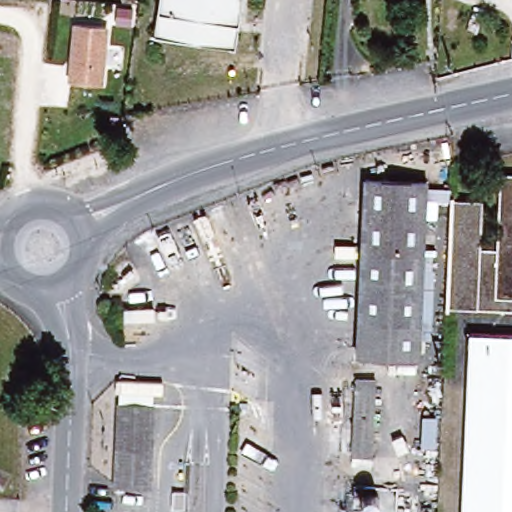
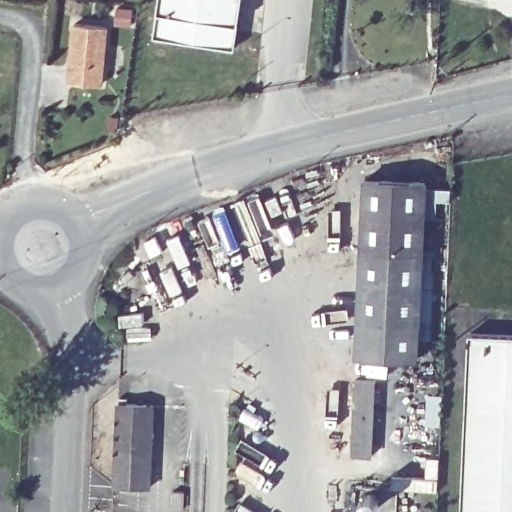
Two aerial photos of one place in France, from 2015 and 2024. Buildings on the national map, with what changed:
unchanged [(236,48),(157,38),(163,0),(242,0),(236,48)]
unchanged [(72,21),(110,22),(106,82),(67,80),(72,21)]
demolished [(454,196),(482,198),(480,247),(501,247),(508,173),(512,174),(512,312),(449,307),(454,196)]
unchanged [(416,354),(357,350),(371,183),(428,186),(416,354)]
unchanged [(464,512),(475,340),(512,342),(512,512),(464,512)]
unchanged [(353,377),(377,379),(373,459),(350,458),(353,377)]
unchanged [(145,485),(117,484),(120,403),(146,406),(145,485)]
demolished [(412,489),(410,512),(394,512),(397,487),(412,489)]

